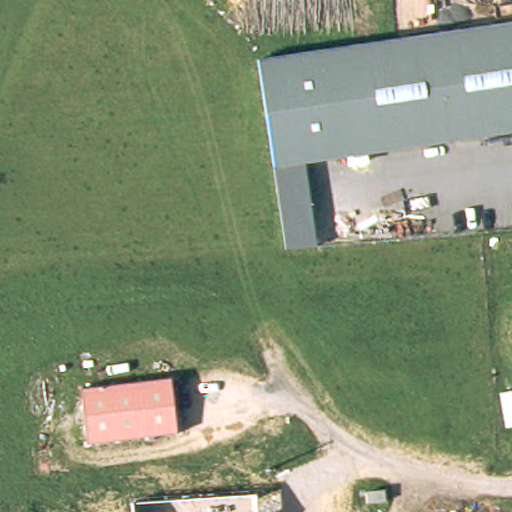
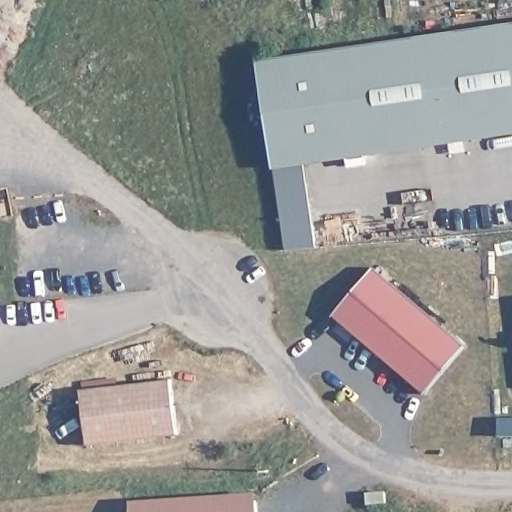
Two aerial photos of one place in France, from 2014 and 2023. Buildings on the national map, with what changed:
unchanged [(275,168),(258,61),(512,21),(512,133),(275,168)]
unchanged [(316,247),(285,250),(275,168),(305,164),(316,247)]
new [(465,345),(424,392),(333,315),(374,267),(465,345)]
unchanged [(170,379),(177,435),(87,446),(80,390),(170,379)]
unchanged [(132,512),(132,504),(255,495),(256,512),(132,512)]

